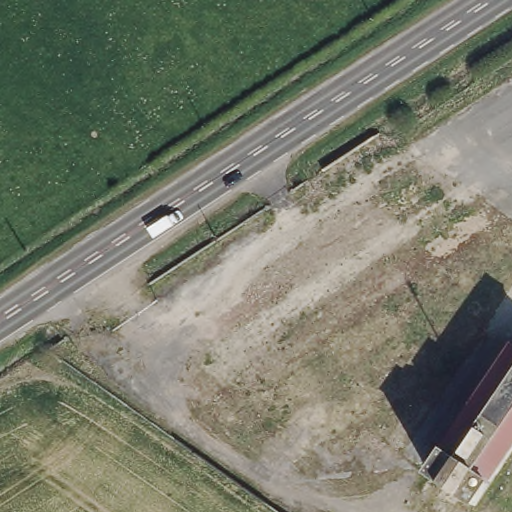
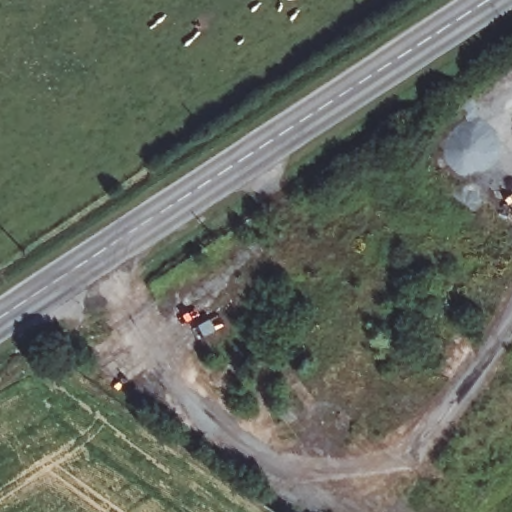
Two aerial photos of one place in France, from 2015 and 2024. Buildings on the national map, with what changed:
unchanged [(328,168),(340,185),(317,200),(305,183),(328,168)]
demolished [(512,354),(512,444),(505,455),(470,508),(422,480),(505,350),(512,354)]

